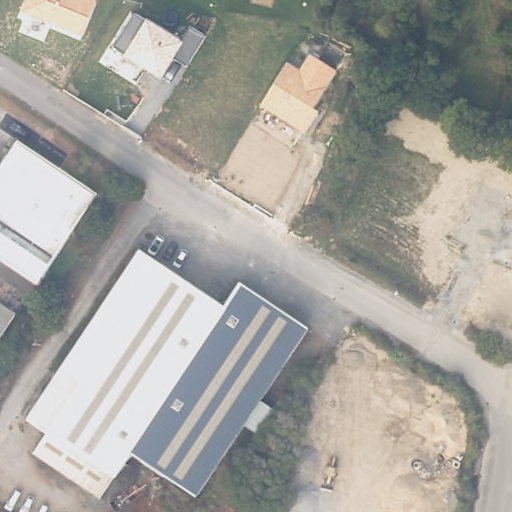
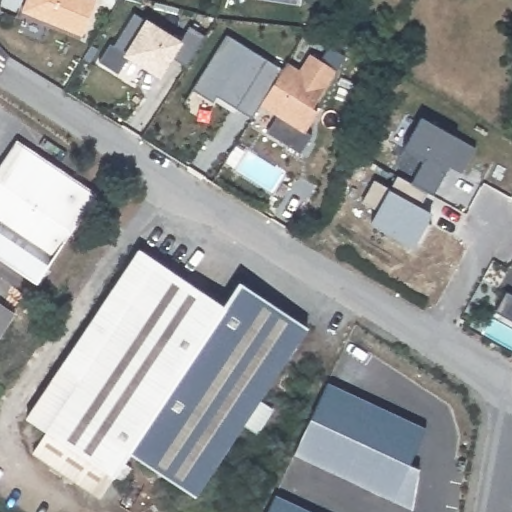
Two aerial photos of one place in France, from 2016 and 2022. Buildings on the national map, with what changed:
unchanged [(30,0),(97,0),(85,34),(26,11),(30,0)]
unchanged [(191,27),(204,35),(188,65),(174,57),(160,78),(125,56),(114,47),(134,15),(146,21),(147,19),(184,42),(191,27)]
new [(261,106),(259,105),(251,117),(216,96),(214,100),(193,89),(227,35),(284,71),(261,106)]
unchanged [(301,71),(313,54),(338,72),(314,108),(318,110),(306,130),(261,106),(289,62),(301,71)]
new [(311,134),(297,152),(265,132),(276,115),(306,130),(311,134)]
new [(473,144),(461,171),(449,165),(446,172),(439,169),(402,150),(422,115),(458,135),(473,144)]
unchanged [(96,198),(36,287),(0,263),(0,169),(16,145),(96,198)]
new [(366,175),(383,185),(390,171),(420,187),(412,202),(424,209),(419,216),(424,219),(413,240),(408,238),(406,241),(364,219),(371,206),(355,197),(366,175)]
unchanged [(121,483),(115,480),(114,481),(46,436),(26,423),(140,254),(223,310),(239,286),(307,331),(259,403),(272,412),(256,437),(243,428),(194,500),(130,457),(123,466),(130,471),(121,483)]
unchanged [(498,312),(507,291),(512,294),(512,320),(498,312)]
unchanged [(0,342),(0,310),(15,320),(0,342)]
new [(329,383),(428,429),(411,465),(421,469),(414,510),(296,455),(295,454),(329,383)]
unchanged [(100,501),(33,457),(46,436),(114,481),(100,501)]
new [(312,512),(268,512),(276,495),(312,512)]

